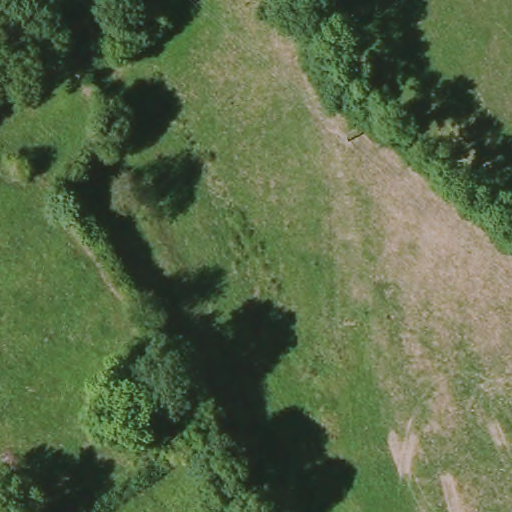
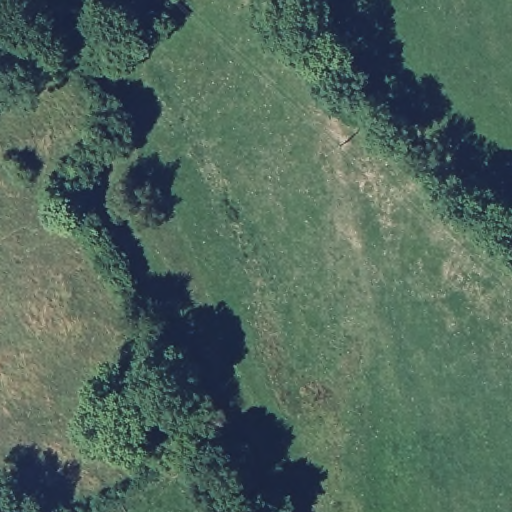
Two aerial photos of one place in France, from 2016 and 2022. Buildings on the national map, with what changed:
unchanged [(46,512),(32,512),(42,506),(46,512)]

